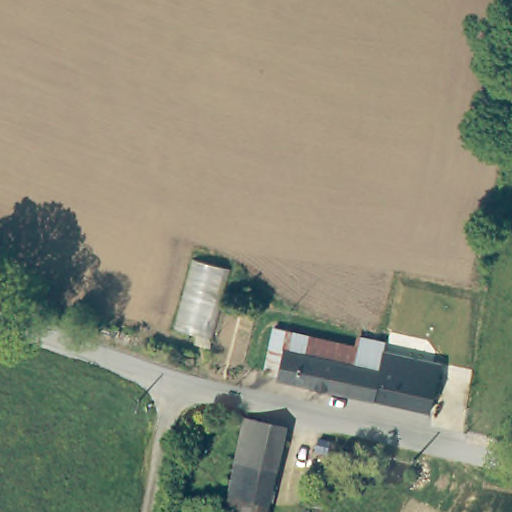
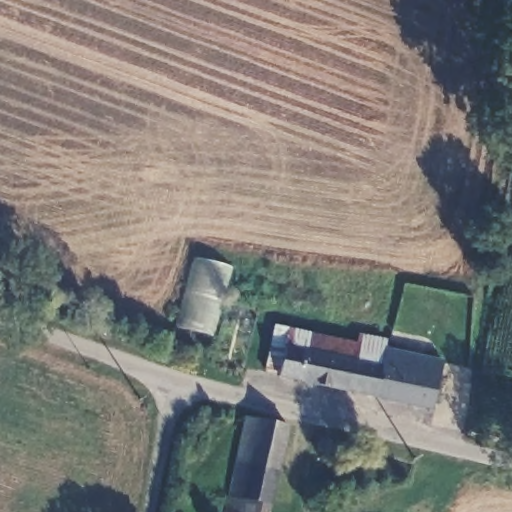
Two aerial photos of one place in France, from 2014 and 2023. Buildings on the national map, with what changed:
unchanged [(429,406),(375,393),(287,374),(280,369),(265,363),(271,340),(275,323),(300,329),(360,344),(362,333),(385,338),(384,348),(439,359),(429,406)]
unchanged [(287,424),(273,502),(243,494),(229,490),(245,414),(287,424)]
unchanged [(273,502),(271,512),(224,512),(229,490),(243,494),(273,502)]

